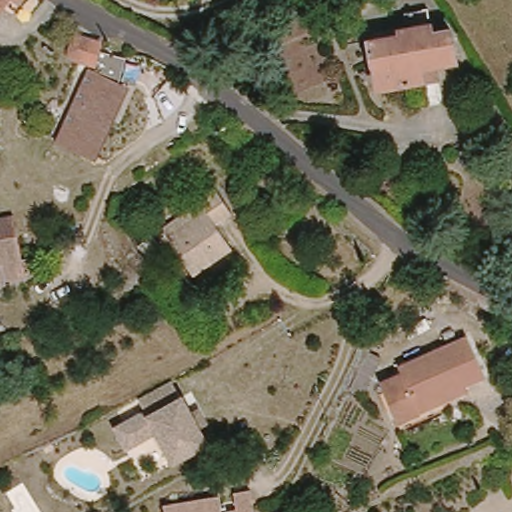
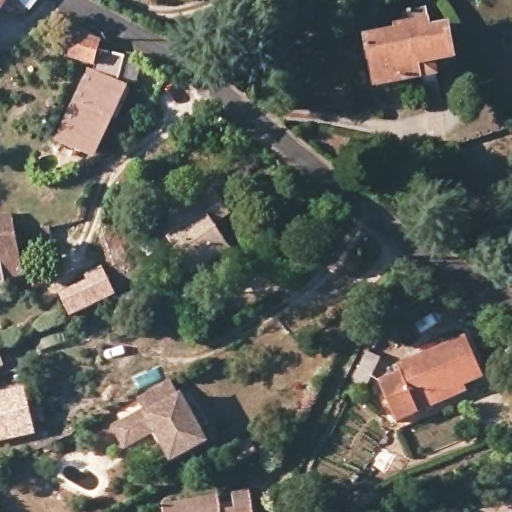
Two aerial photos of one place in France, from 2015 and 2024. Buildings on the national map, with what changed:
unchanged [(0,10),(0,0),(10,0),(0,10)]
unchanged [(17,5),(11,0),(21,0),(17,5)]
unchanged [(423,79),(378,82),(372,38),(400,35),(399,28),(435,25),(435,31),(452,30),(455,59),(435,61),(440,100),(426,101),(423,79)]
unchanged [(95,42),(101,44),(92,68),(72,60),(67,57),(75,34),(95,42)]
unchanged [(125,57),(117,82),(129,87),(95,160),(55,141),(88,66),(92,68),(98,50),(125,57)]
unchanged [(162,235),(200,210),(194,202),(213,190),(229,212),(210,225),(225,247),(231,256),(192,282),(186,272),(162,235)]
unchanged [(10,214),(23,271),(0,276),(0,215),(10,214)]
new [(117,295),(71,316),(59,293),(87,280),(85,273),(102,265),(117,295)]
unchanged [(436,405),(412,415),(392,426),(373,387),(394,377),(390,370),(457,337),(476,376),(456,386),(460,393),(436,405)]
unchanged [(158,432),(132,450),(116,423),(146,406),(141,396),(173,376),(184,395),(190,392),(219,442),(176,462),(158,432)]
new [(37,433),(0,441),(0,392),(25,386),(37,433)]
unchanged [(223,493),(225,507),(237,505),(237,489),(253,486),(257,512),(168,512),(167,502),(223,493)]

